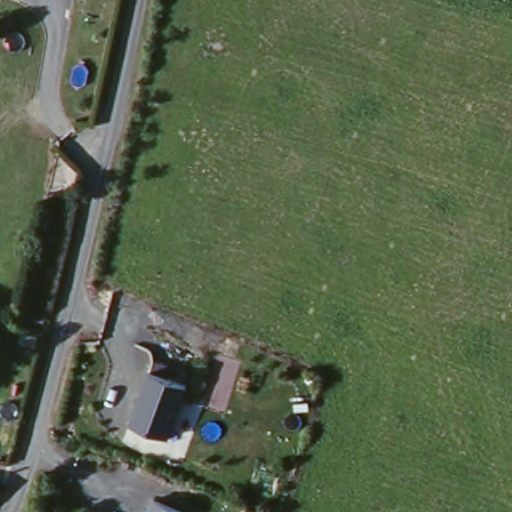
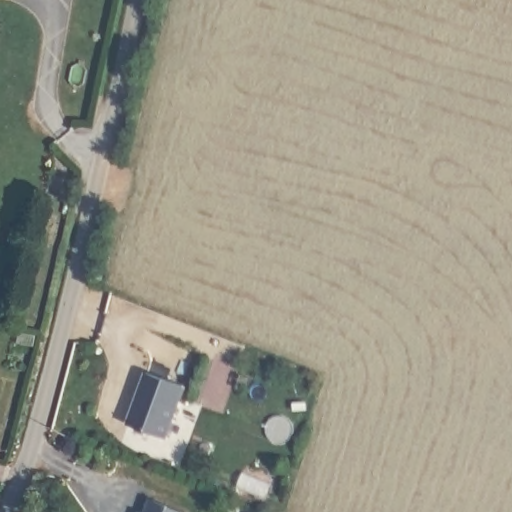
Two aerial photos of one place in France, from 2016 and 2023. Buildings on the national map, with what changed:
unchanged [(187,382),(170,435),(131,423),(149,372),(187,382)]
unchanged [(189,512),(146,512),(151,497),(190,510),(189,512)]

